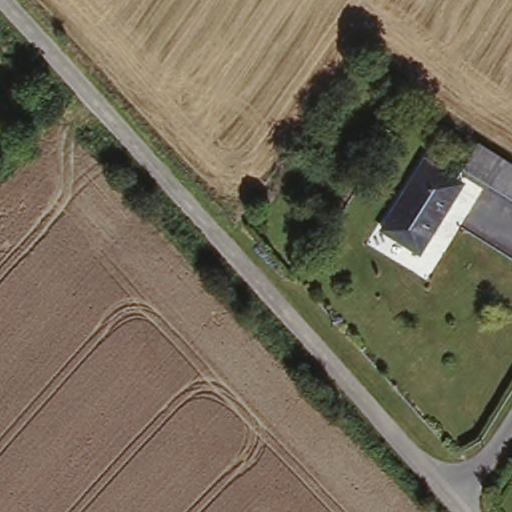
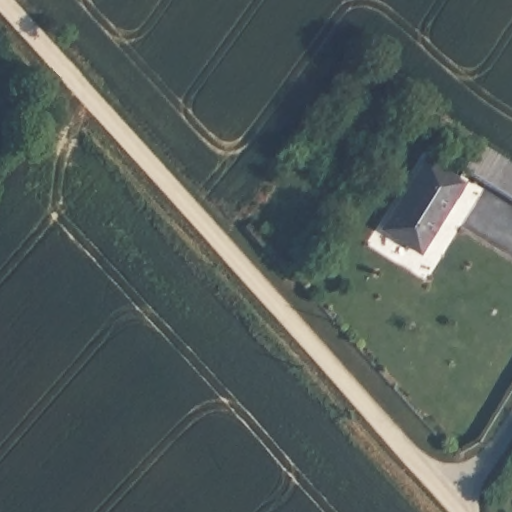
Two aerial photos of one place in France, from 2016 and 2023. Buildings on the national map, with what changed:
unchanged [(512,166),(512,199),(461,168),(475,144),(512,166)]
unchanged [(419,161),(456,183),(415,252),(378,230),(419,161)]

